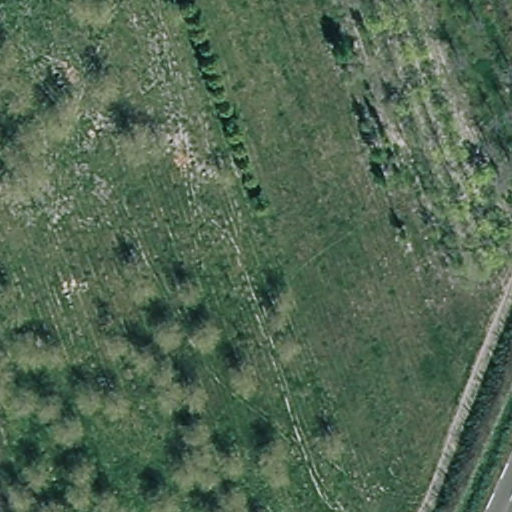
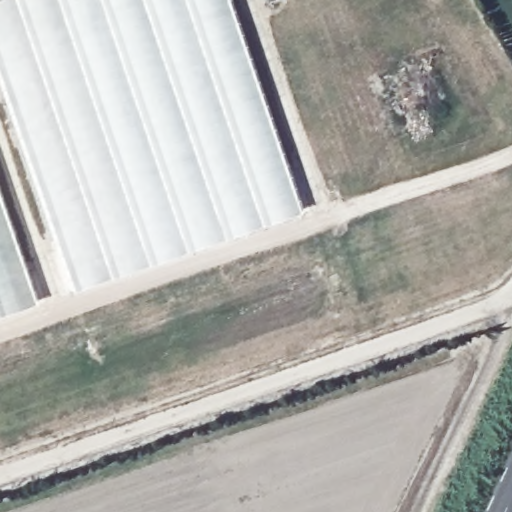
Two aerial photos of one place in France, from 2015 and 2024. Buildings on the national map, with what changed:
new [(297,209),(71,288),(0,87),(0,0),(225,0),(297,209)]
new [(0,311),(0,208),(32,300),(0,311)]

